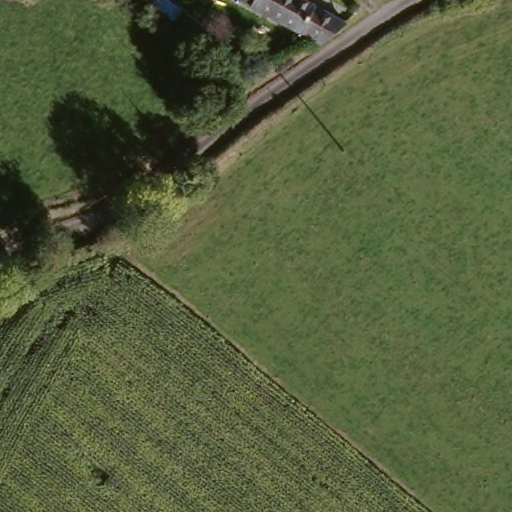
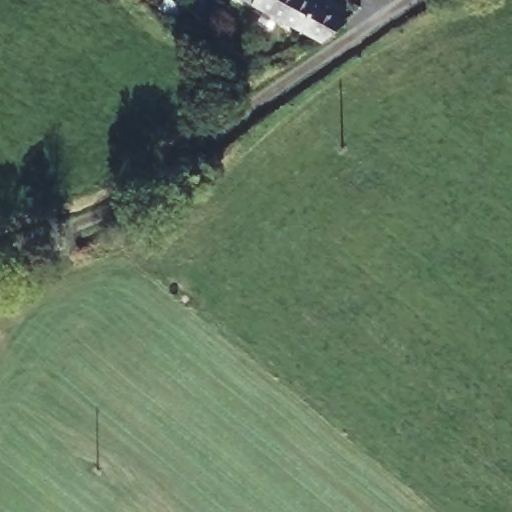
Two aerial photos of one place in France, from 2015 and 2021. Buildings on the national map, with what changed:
unchanged [(231,0),(298,0),(341,23),(314,44),(231,0)]

